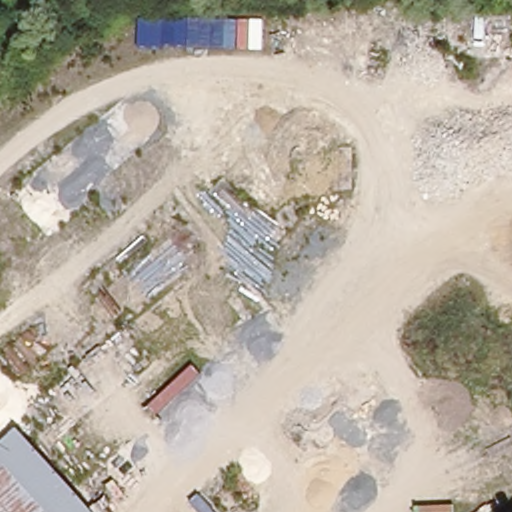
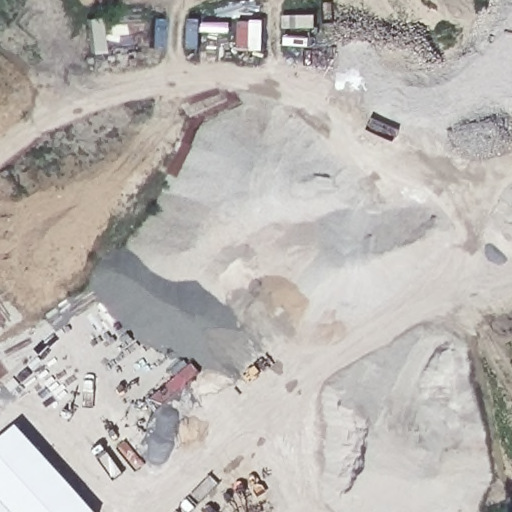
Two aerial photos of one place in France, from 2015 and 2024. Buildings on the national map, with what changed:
unchanged [(20,427),(91,512),(0,512),(0,444),(20,427)]

